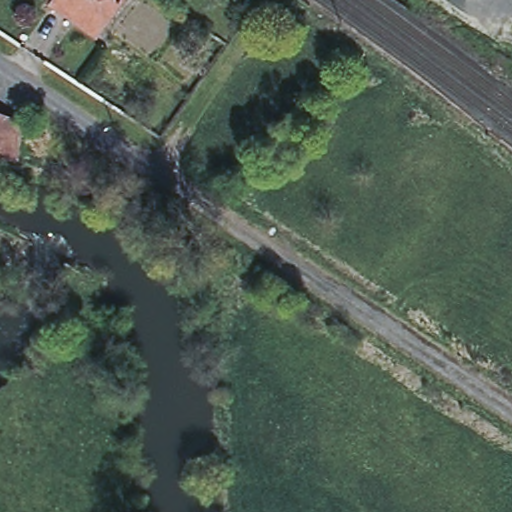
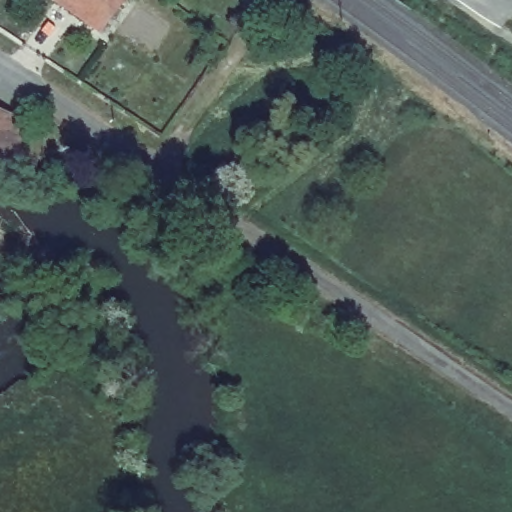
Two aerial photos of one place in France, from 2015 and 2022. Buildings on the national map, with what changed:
unchanged [(55,0),(55,1),(53,0),(55,0)]
unchanged [(55,1),(55,0),(124,0),(100,33),(55,1)]
unchanged [(22,124),(15,161),(0,158),(0,119),(22,124)]

